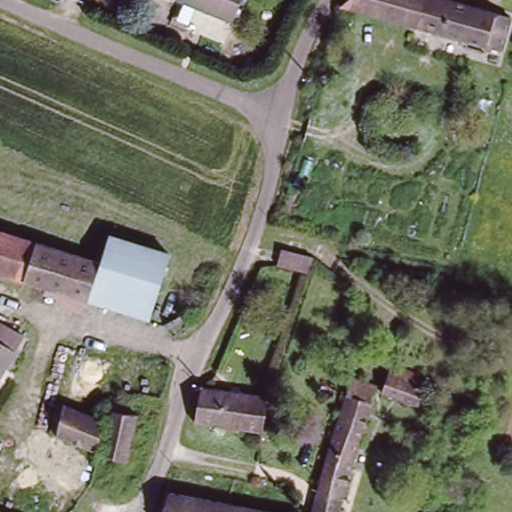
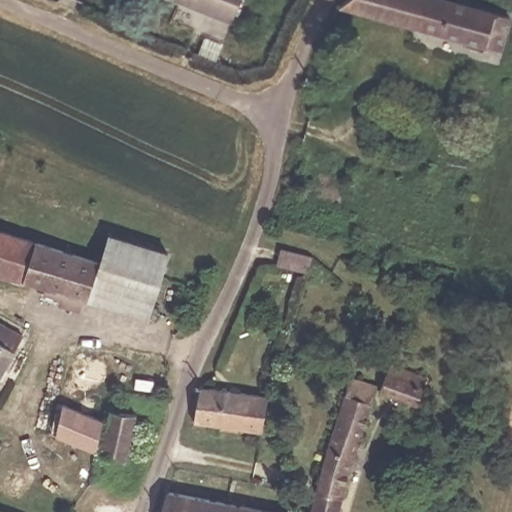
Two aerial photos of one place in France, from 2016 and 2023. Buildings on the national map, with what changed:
unchanged [(183,0),(240,0),(231,21),(183,0)]
unchanged [(494,49),(338,0),(448,0),(504,17),(494,49)]
unchanged [(150,312),(88,296),(93,277),(98,259),(98,257),(108,229),(166,244),(154,294),(150,312)]
unchanged [(88,296),(0,271),(0,230),(98,259),(93,277),(88,296)]
unchanged [(319,270),(309,267),(289,261),(293,243),(315,249),(324,252),(319,270)]
unchanged [(16,351),(0,380),(0,325),(23,338),(16,351)]
unchanged [(391,368),(427,385),(413,415),(378,398),(391,368)]
unchanged [(339,412),(344,389),(374,388),(342,496),(339,512),(313,512),(339,412)]
unchanged [(261,433),(195,423),(206,390),(266,399),(261,433)]
unchanged [(92,452),(47,432),(55,402),(99,421),(92,452)]
unchanged [(97,457),(110,408),(137,415),(123,464),(97,457)]
unchanged [(166,494),(268,512),(160,512),(166,494)]
unchanged [(0,508),(9,512),(0,512),(0,508)]

